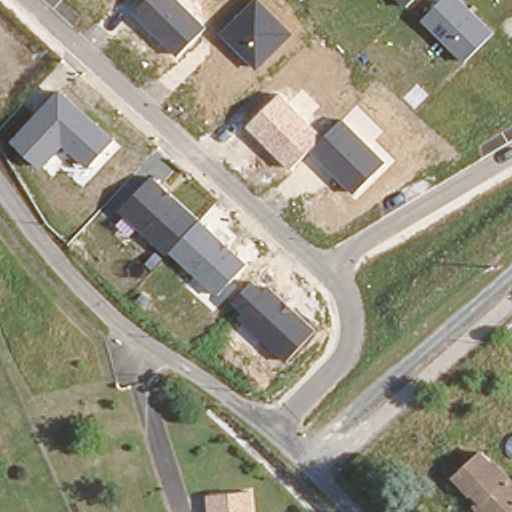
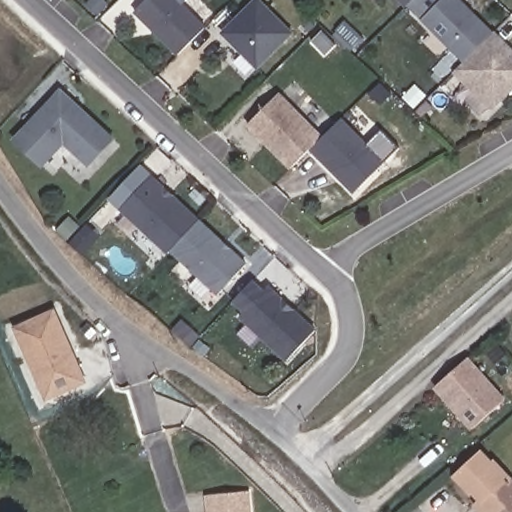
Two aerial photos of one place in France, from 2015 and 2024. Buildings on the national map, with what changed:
unchanged [(180,54),(137,11),(148,0),(180,0),(207,26),(180,54)]
unchanged [(255,70),(222,34),(257,0),(262,0),(295,34),(255,70)]
unchanged [(405,7),(398,0),(413,0),(405,7)]
unchanged [(463,61),(423,21),(445,0),(461,0),(496,34),(463,61)]
new [(512,49),(512,91),(492,111),(453,71),(463,61),(496,34),(512,49)]
unchanged [(89,167),(66,146),(45,168),(17,140),(65,90),(119,140),(89,167)]
unchanged [(315,144),(311,147),(292,168),(247,126),(278,93),(323,135),(315,144)]
unchanged [(315,144),(323,135),(342,116),(385,162),(352,191),(311,147),(315,144)]
unchanged [(217,296),(171,252),(168,255),(141,230),(135,235),(123,222),(129,216),(124,211),(155,177),(250,263),(217,296)]
unchanged [(286,361),(239,314),(242,310),(232,300),(251,280),(264,290),(267,287),(316,330),(286,361)]
new [(46,403),(13,327),(55,308),(87,383),(46,403)]
new [(470,430),(435,388),(470,357),(505,398),(470,430)]
unchanged [(512,474),(512,512),(486,512),(478,504),(483,499),(471,485),(469,487),(452,468),(478,445),(491,458),(495,455),(512,474)]
unchanged [(246,512),(206,512),(205,492),(245,489),(246,512)]

